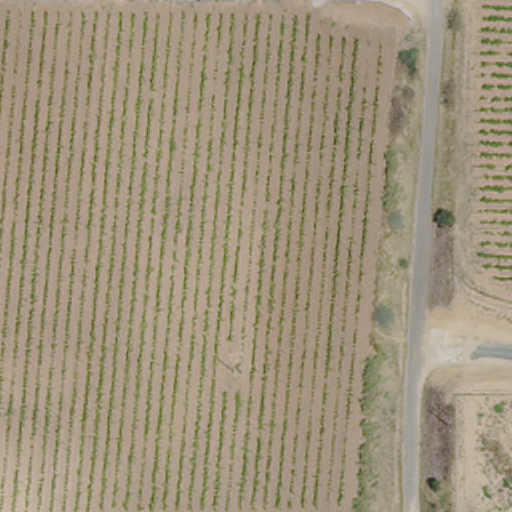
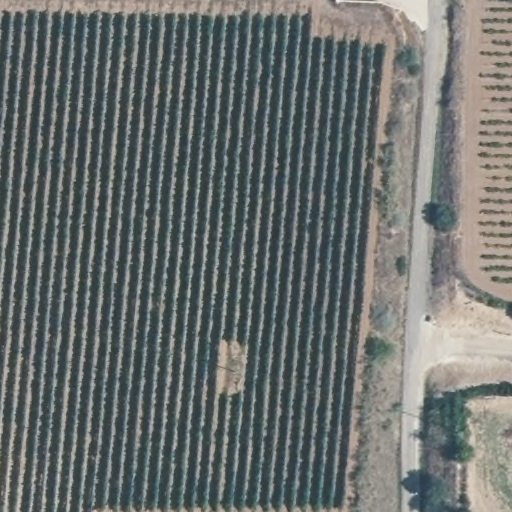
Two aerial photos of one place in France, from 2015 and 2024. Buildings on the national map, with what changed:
[]

